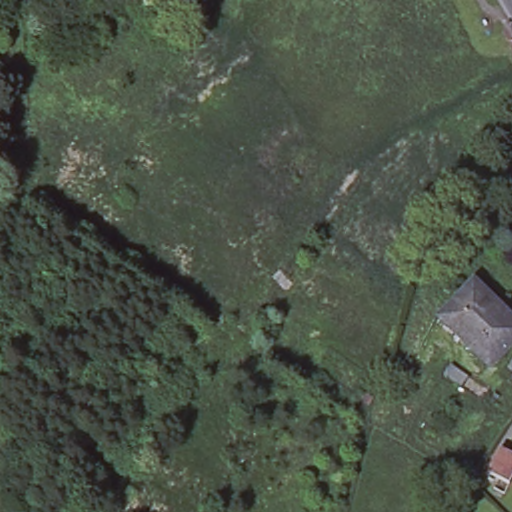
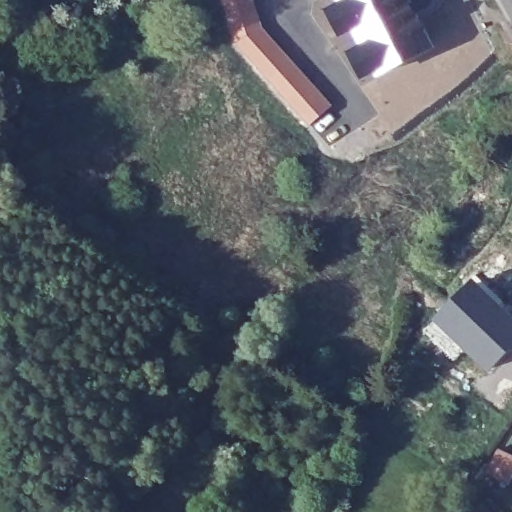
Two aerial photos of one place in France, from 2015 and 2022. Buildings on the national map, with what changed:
new [(261,29),(331,107),(309,128),(233,42),(221,0),(253,0),(261,29)]
new [(336,2),(336,0),(408,0),(433,50),(374,82),(371,73),(358,80),(345,52),(356,47),(349,31),(336,37),(323,10),(336,2)]
unchanged [(493,311),(499,305),(512,319),(512,344),(490,366),(440,317),(470,287),(493,311)]
unchanged [(512,361),(512,368),(509,366),(512,361)]
unchanged [(512,370),(512,382),(506,378),(512,370)]
new [(512,456),(512,478),(508,486),(487,474),(499,449),(512,456)]

